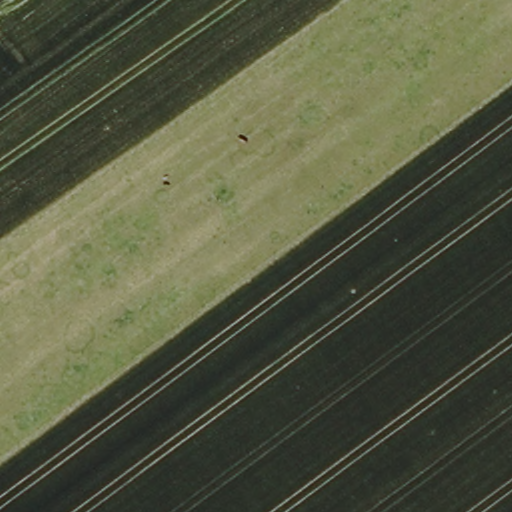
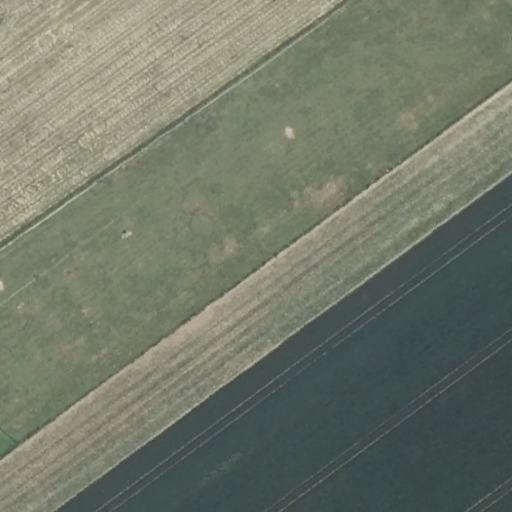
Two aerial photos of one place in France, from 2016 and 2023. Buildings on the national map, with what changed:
[]

